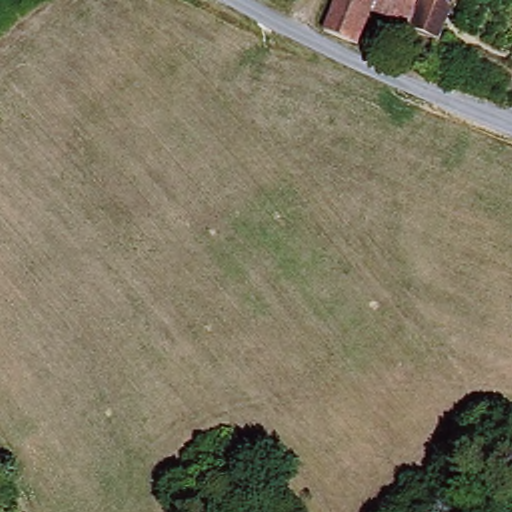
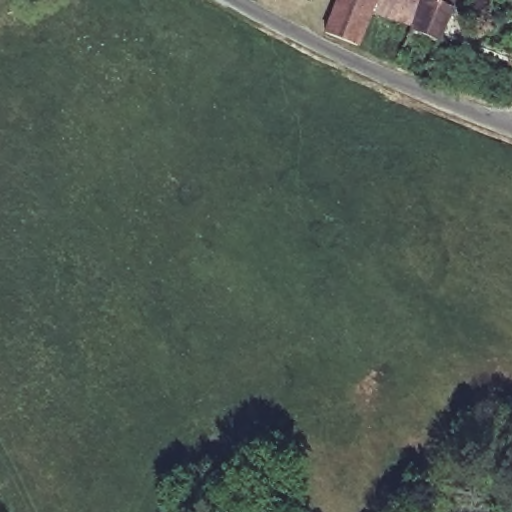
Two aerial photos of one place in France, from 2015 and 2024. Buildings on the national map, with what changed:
unchanged [(328,31),(330,25),(341,0),(380,0),(362,41),(362,44),(328,31)]
unchanged [(417,5),(402,0),(420,0),(417,5)]
unchanged [(457,8),(445,39),(415,27),(424,0),(453,0),(450,6),(457,8)]

